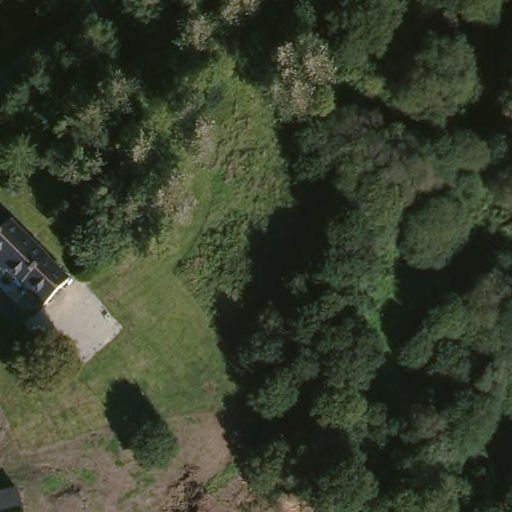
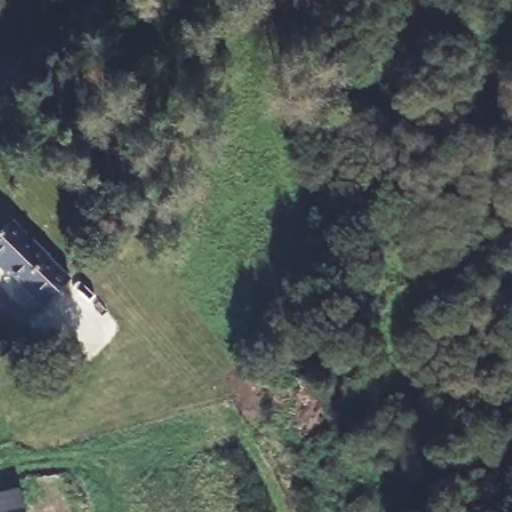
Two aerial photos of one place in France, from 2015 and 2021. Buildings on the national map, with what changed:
unchanged [(12,226),(69,283),(43,309),(8,273),(4,277),(0,273),(0,237),(12,226)]
unchanged [(17,512),(0,512),(0,496),(13,493),(17,512)]

